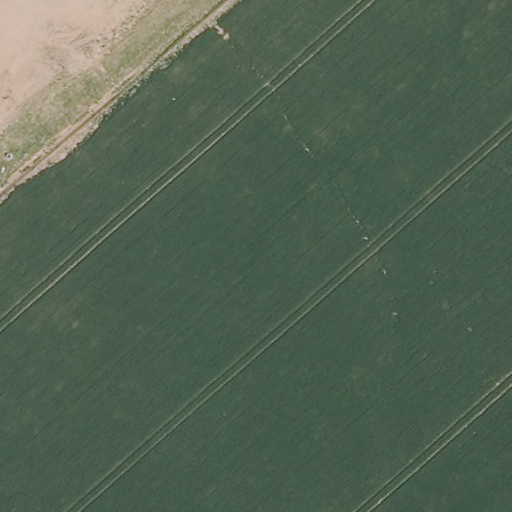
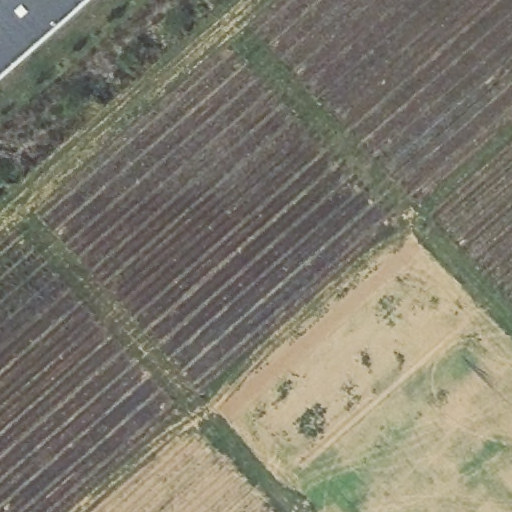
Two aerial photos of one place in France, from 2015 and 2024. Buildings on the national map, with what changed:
new [(73,0),(0,66),(0,0),(73,0)]

